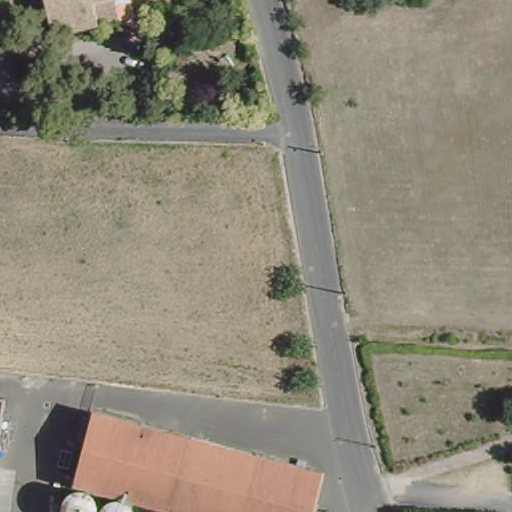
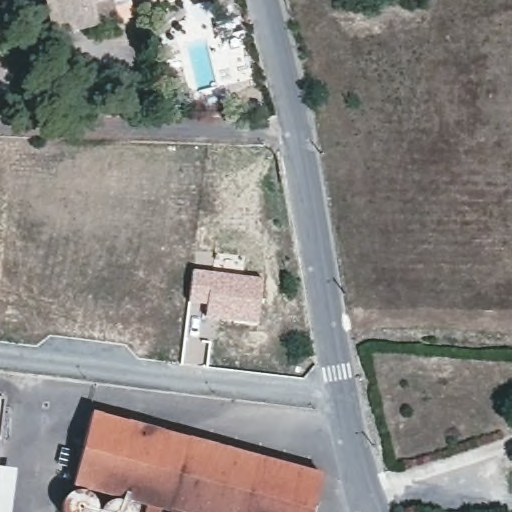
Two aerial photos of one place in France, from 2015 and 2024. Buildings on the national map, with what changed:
unchanged [(43,0),(114,0),(117,16),(103,19),(105,25),(98,26),(97,23),(50,33),(43,0)]
new [(192,269),(262,277),(256,324),(205,317),(206,305),(187,303),(192,269)]
unchanged [(0,420),(0,398),(3,398),(0,420)]
unchanged [(125,504),(87,494),(76,492),(95,420),(169,439),(325,481),(317,512),(153,512),(125,504)]
unchanged [(72,499),(75,497),(77,495),(80,494),(87,494),(94,498),(96,501),(98,504),(99,507),(99,511),(99,512),(68,512),(67,509),(68,506),(70,503),(72,499)]
unchanged [(107,509),(109,508),(111,506),(115,504),(116,504),(125,504),(130,507),(133,511),(133,512),(106,512),(107,509)]

